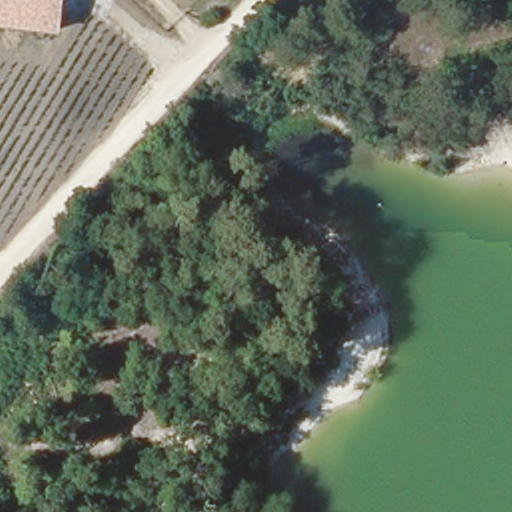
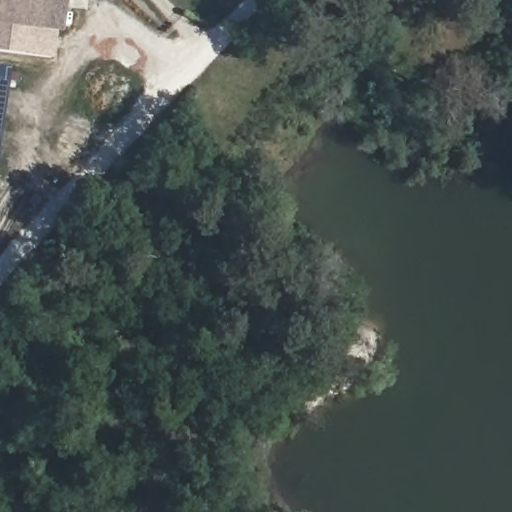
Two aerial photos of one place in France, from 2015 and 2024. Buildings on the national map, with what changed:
unchanged [(0,25),(0,0),(66,0),(63,32),(0,25)]
new [(8,70),(0,134),(0,69),(8,70)]

